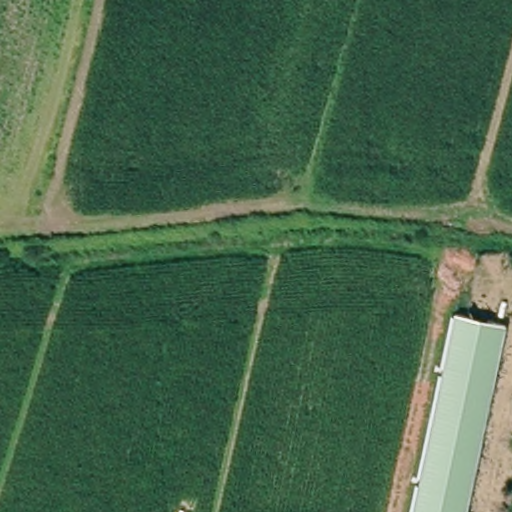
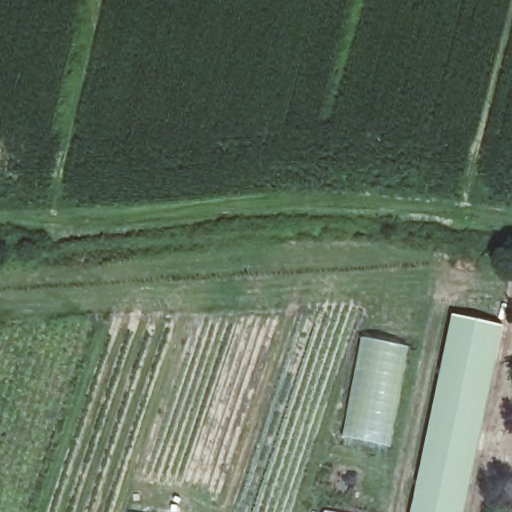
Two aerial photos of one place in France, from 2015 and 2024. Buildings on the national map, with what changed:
unchanged [(501,329),(461,512),(412,512),(454,319),(501,329)]
new [(359,337),(408,347),(395,407),(389,447),(340,438),(359,337)]
new [(324,509),(338,512),(323,512),(324,509)]

